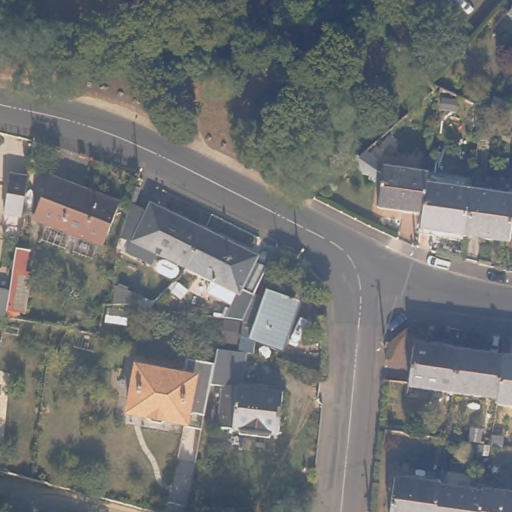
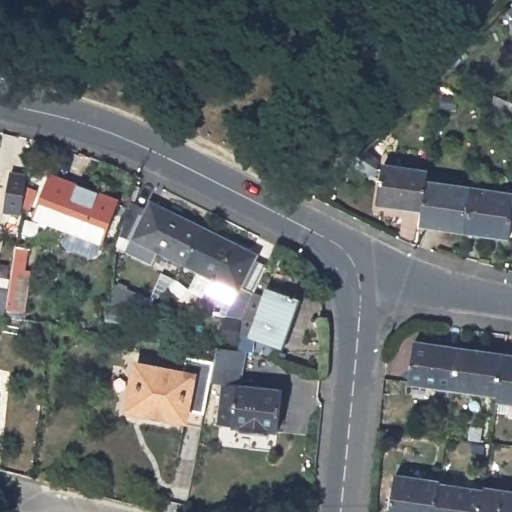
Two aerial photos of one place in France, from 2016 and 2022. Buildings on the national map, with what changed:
unchanged [(512,8),(512,13),(510,10),(512,8)]
unchanged [(512,104),(512,111),(508,119),(483,107),(490,95),(512,104)]
unchanged [(361,156),(370,148),(381,162),(377,186),(357,160),(361,156)]
unchanged [(380,203),(385,162),(431,169),(430,179),(426,208),(380,203)]
unchanged [(9,176),(26,179),(24,195),(20,215),(4,211),(9,176)]
unchanged [(116,201),(100,242),(35,217),(51,176),(116,201)]
unchanged [(426,208),(430,179),(472,185),(466,230),(424,225),(426,208)]
unchanged [(512,190),(512,236),(466,230),(472,185),(512,190)]
unchanged [(144,210),(147,204),(199,229),(181,266),(153,251),(148,261),(123,250),(128,239),(119,235),(128,203),(144,210)]
unchanged [(233,293),(181,266),(199,229),(245,251),(251,255),(244,270),(235,288),(248,293),(260,299),(265,287),(298,300),(277,350),(246,338),(245,351),(236,348),(235,348),(236,318),(221,316),(233,293)]
unchanged [(29,244),(25,265),(31,266),(25,308),(6,306),(10,287),(17,242),(29,244)]
unchanged [(10,287),(6,306),(4,321),(0,321),(0,285),(10,287)]
unchanged [(398,377),(405,336),(450,342),(444,384),(398,377)]
unchanged [(488,390),(444,384),(450,342),(493,348),(488,390)]
unchanged [(235,348),(236,348),(234,386),(277,390),(273,431),(215,426),(219,385),(205,383),(209,360),(211,346),(235,348)]
unchanged [(488,390),(493,348),(512,351),(512,399),(487,395),(488,390)]
unchanged [(198,427),(179,423),(180,418),(167,415),(158,420),(149,418),(141,410),(124,406),(133,363),(179,372),(182,355),(209,360),(205,383),(201,412),(200,421),(198,427)]
unchanged [(437,480),(437,483),(433,512),(387,512),(393,474),(437,480)]
unchanged [(481,490),(478,512),(433,512),(437,483),(481,490)]
unchanged [(481,486),(512,491),(512,512),(478,512),(481,490),(481,486)]

